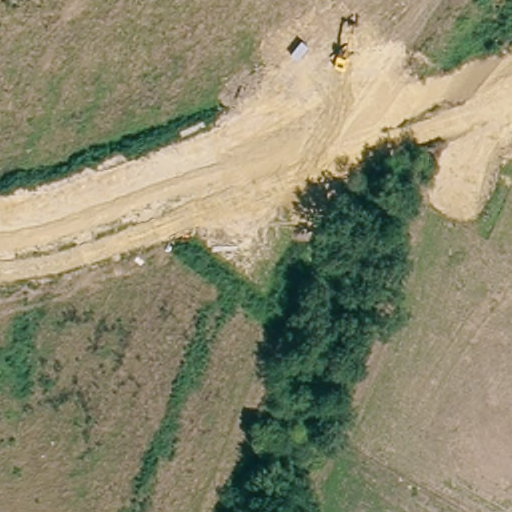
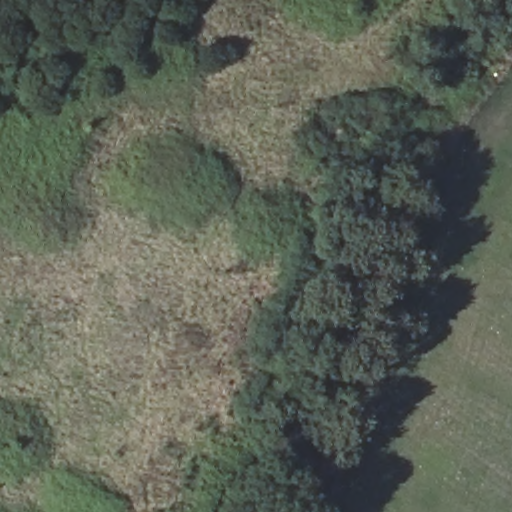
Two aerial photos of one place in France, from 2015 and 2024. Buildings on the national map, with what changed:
[]

